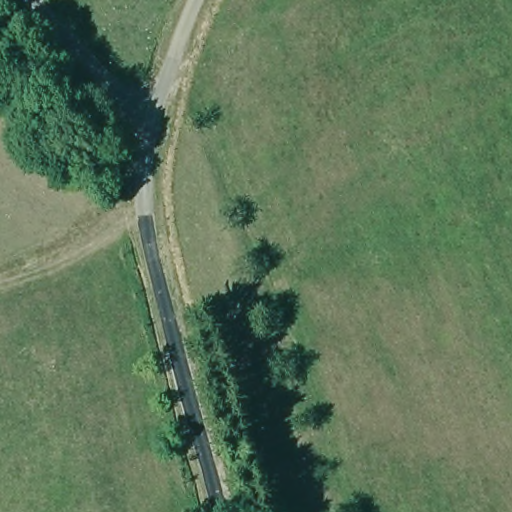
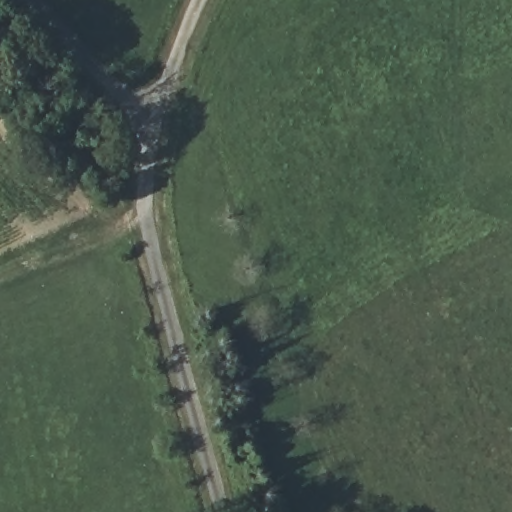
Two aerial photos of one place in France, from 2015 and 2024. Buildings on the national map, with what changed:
[]

